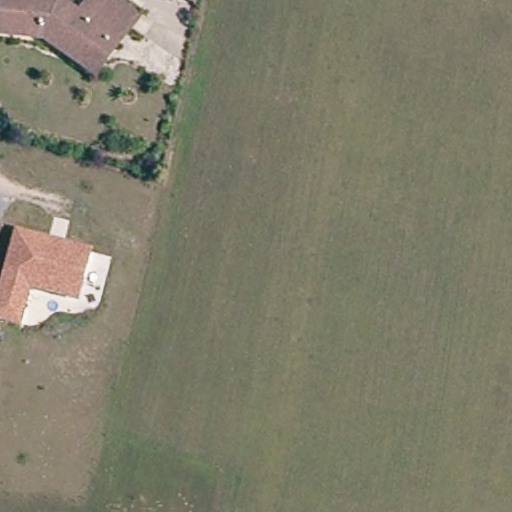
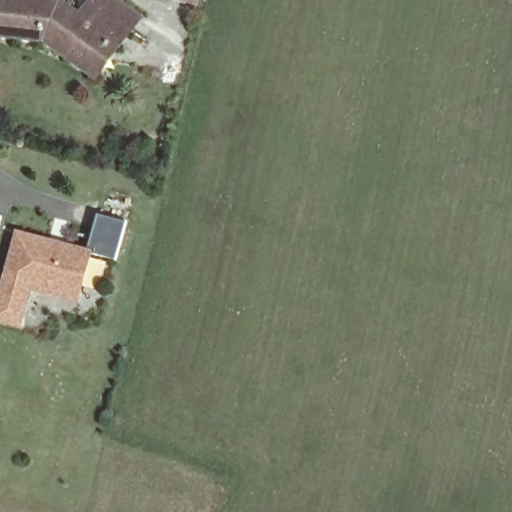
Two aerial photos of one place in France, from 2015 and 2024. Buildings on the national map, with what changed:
unchanged [(56,47),(0,38),(0,0),(23,0),(22,4),(59,10),(74,19),(86,5),(94,10),(128,32),(112,54),(92,80),(60,59),(65,52),(56,47)]
new [(129,224),(118,261),(93,254),(95,249),(90,247),(101,215),(129,224)]
unchanged [(0,291),(17,229),(95,249),(80,306),(32,292),(22,330),(0,325),(0,291)]

